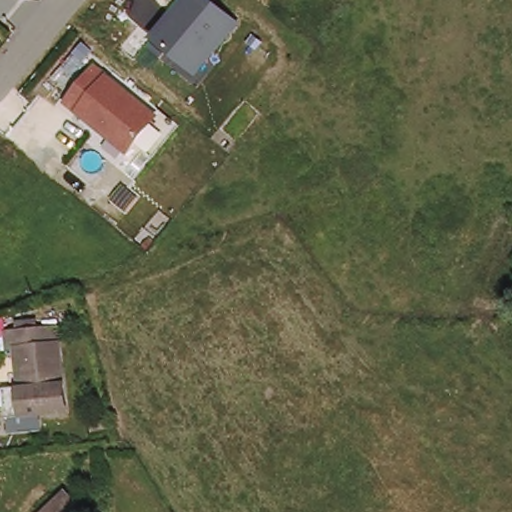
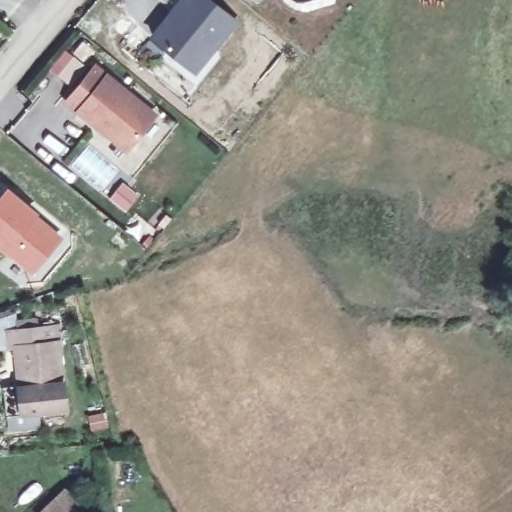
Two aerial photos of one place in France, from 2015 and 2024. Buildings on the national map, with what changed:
unchanged [(196,76),(150,37),(178,0),(212,0),(240,23),(196,76)]
unchanged [(160,115),(127,155),(65,102),(96,63),(160,115)]
new [(75,162),(85,151),(115,176),(106,187),(75,162)]
new [(122,180),(140,195),(126,212),(109,198),(122,180)]
new [(8,186),(65,238),(32,275),(0,249),(0,197),(8,186)]
unchanged [(61,343),(66,408),(8,412),(6,385),(21,384),(20,345),(11,345),(11,326),(51,324),(52,343),(61,343)]
unchanged [(82,512),(44,512),(62,492),(82,512)]

